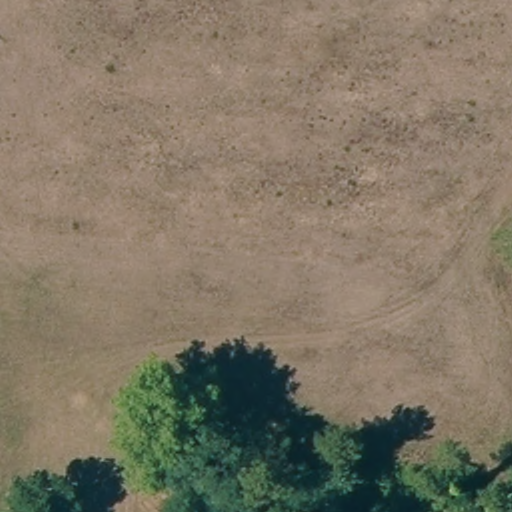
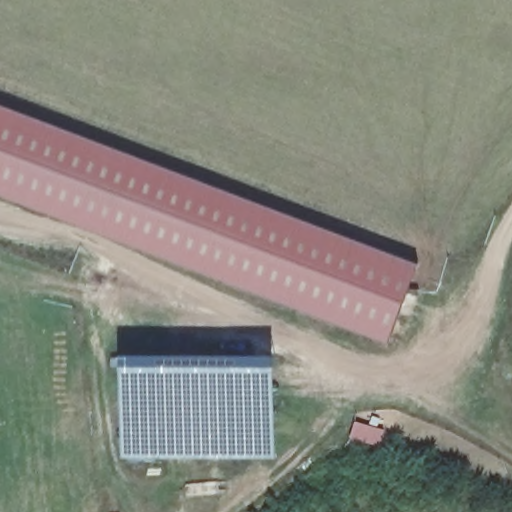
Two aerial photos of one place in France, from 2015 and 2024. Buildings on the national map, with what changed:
new [(388,339),(0,190),(0,102),(418,262),(388,339)]
new [(150,357),(150,362),(276,365),(276,457),(121,457),(122,406),(119,355),(150,357)]
demolished [(138,376),(127,439),(77,430),(88,363),(138,376)]
new [(354,422),(385,431),(378,455),(347,446),(354,422)]

